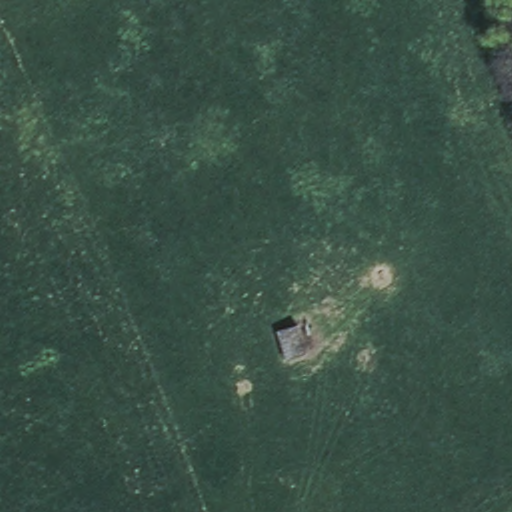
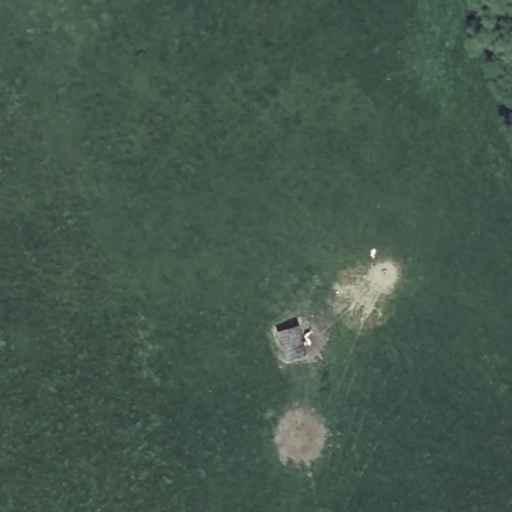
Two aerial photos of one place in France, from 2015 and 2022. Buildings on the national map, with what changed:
unchanged [(297,322),(305,354),(285,360),(275,328),(297,322)]

